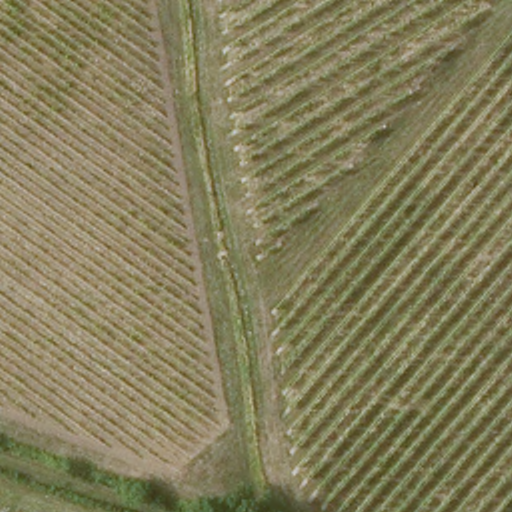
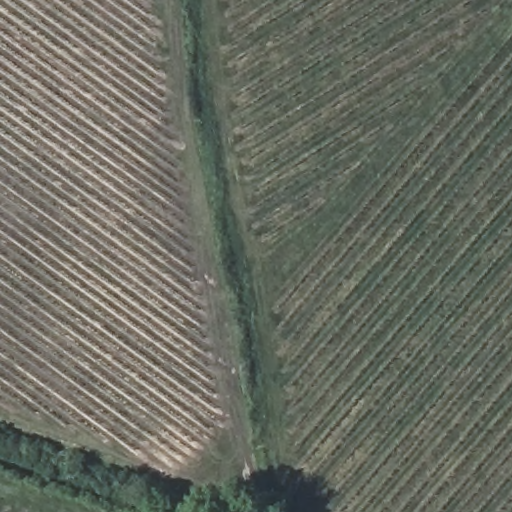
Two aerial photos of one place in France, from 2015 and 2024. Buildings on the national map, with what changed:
[]

